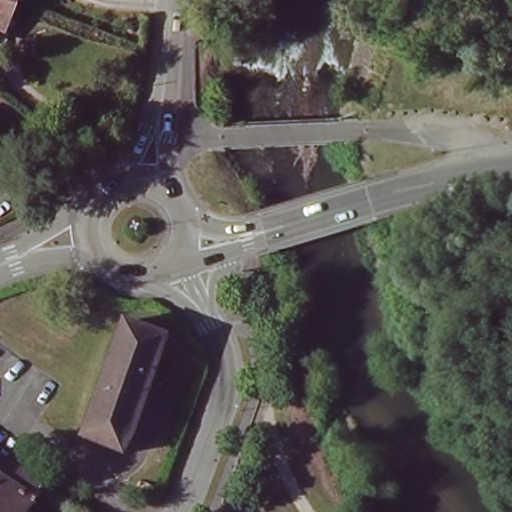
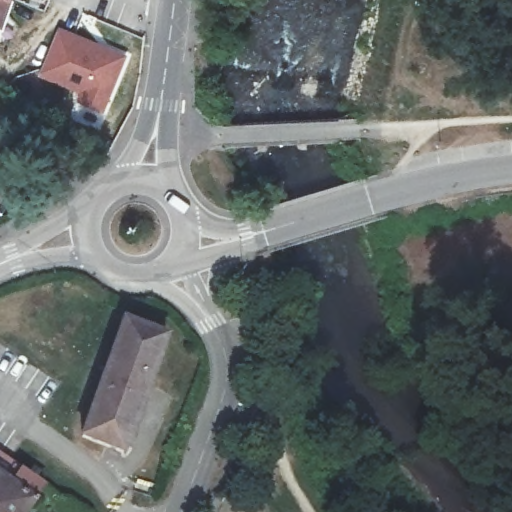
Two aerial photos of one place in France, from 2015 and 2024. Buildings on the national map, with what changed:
unchanged [(16,0),(7,27),(0,27),(0,0),(16,0)]
new [(128,55),(100,122),(72,111),(80,94),(37,77),(61,26),(128,55)]
unchanged [(6,140),(0,147),(0,135),(6,140)]
unchanged [(81,444),(126,314),(171,328),(127,460),(81,444)]
unchanged [(47,490),(31,512),(0,512),(0,458),(47,490)]

